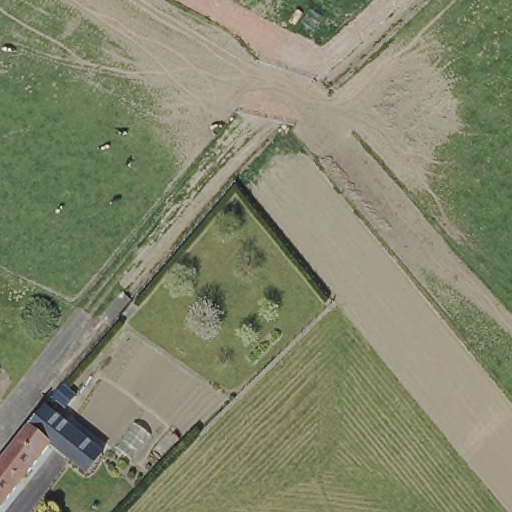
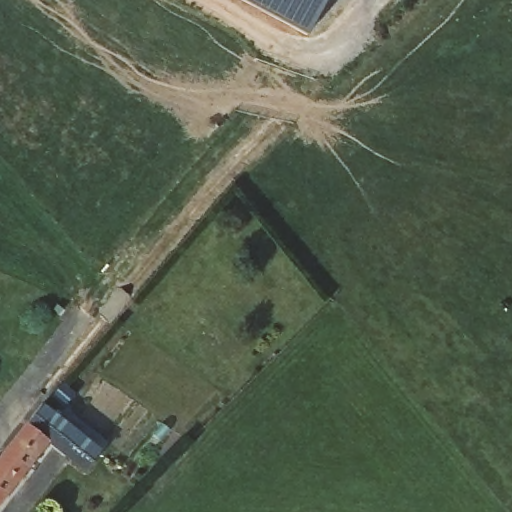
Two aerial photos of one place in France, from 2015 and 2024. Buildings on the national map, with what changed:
new [(248,0),(326,0),(308,33),(248,0)]
unchanged [(41,407),(99,453),(85,471),(47,442),(0,502),(0,459),(41,407)]

